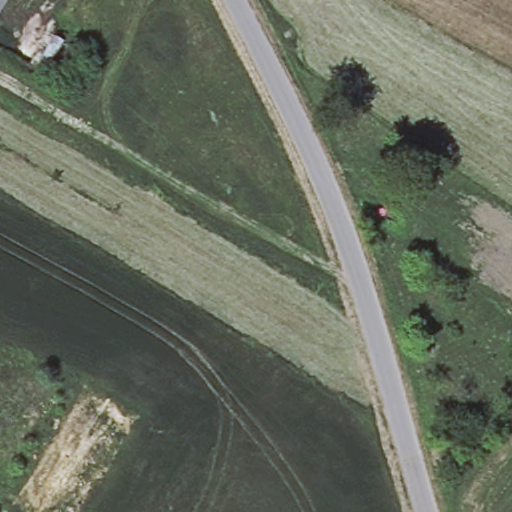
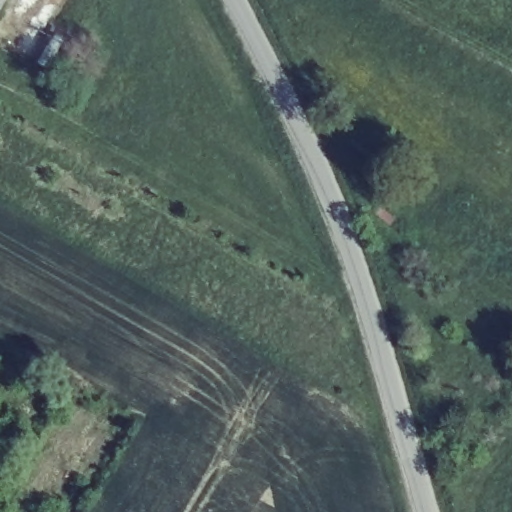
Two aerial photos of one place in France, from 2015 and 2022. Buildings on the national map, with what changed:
unchanged [(0,6),(0,0),(3,0),(0,6)]

